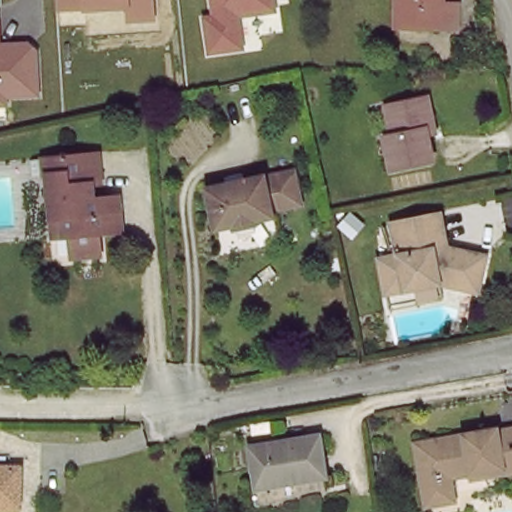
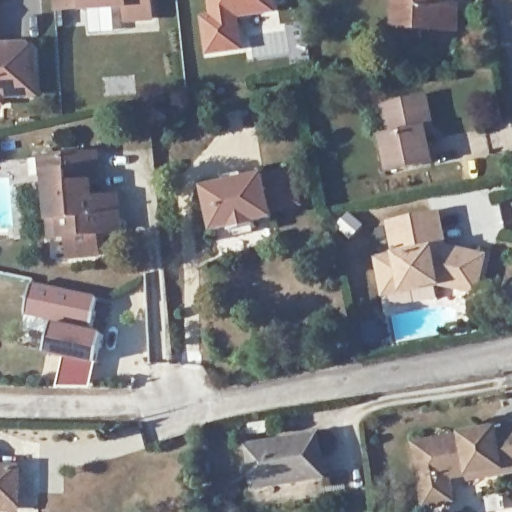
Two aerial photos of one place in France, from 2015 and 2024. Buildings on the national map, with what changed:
unchanged [(54,0),(153,0),(154,23),(123,25),(123,12),(80,13),(55,12),(54,0)]
unchanged [(199,16),(210,15),(208,0),(274,0),(275,13),(240,18),(243,53),(208,57),(199,16)]
unchanged [(453,4),(452,28),(389,26),(390,0),(439,0),(439,4),(453,4)]
unchanged [(33,48),(36,98),(5,99),(5,109),(0,109),(0,43),(28,42),(33,48)]
unchanged [(391,169),(383,134),(389,133),(383,103),(425,94),(432,125),(426,126),(432,160),(391,169)]
unchanged [(50,218),(45,176),(43,176),(40,159),(97,153),(100,182),(88,183),(90,198),(93,198),(110,196),(113,231),(103,232),(96,233),(99,254),(70,256),(68,235),(63,235),(51,237),(50,218)]
unchanged [(206,188),(265,176),(265,178),(293,171),(300,203),(271,209),(273,217),(256,220),(257,226),(235,231),(233,224),(216,228),(206,188)]
unchanged [(473,293),(439,284),(437,285),(386,294),(380,261),(397,258),(391,225),(406,223),(431,218),(438,217),(443,246),(482,256),(473,293)]
new [(31,284),(99,298),(93,326),(90,325),(88,330),(105,334),(100,362),(47,351),(54,318),(25,312),(31,284)]
unchanged [(450,500),(421,506),(409,443),(491,428),(491,431),(512,427),(512,469),(498,472),(497,467),(446,477),(450,500)]
unchanged [(320,434),(326,476),(256,489),(248,447),(320,434)]
unchanged [(14,510),(0,510),(0,466),(15,466),(14,510)]

